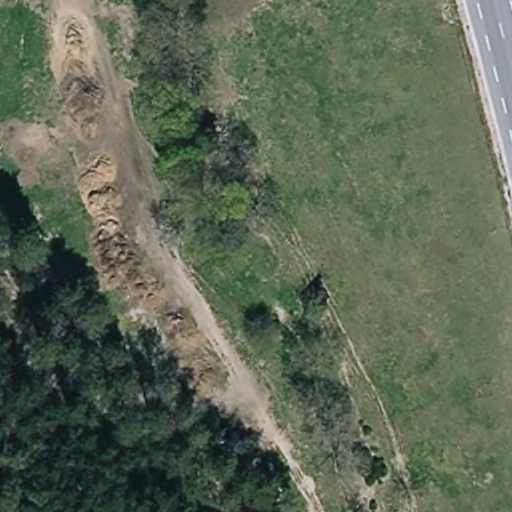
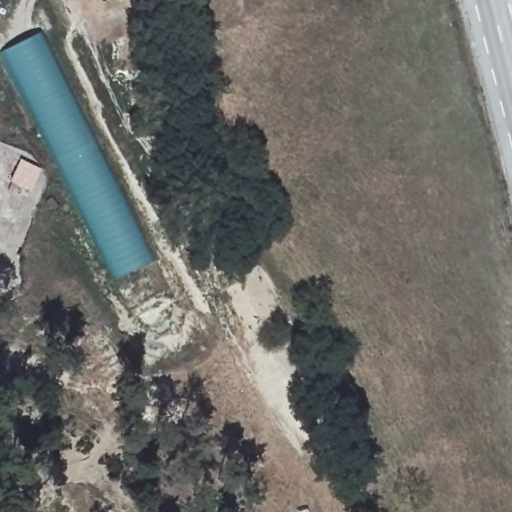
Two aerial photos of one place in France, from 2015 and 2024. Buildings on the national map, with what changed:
new [(39,31),(158,258),(113,281),(0,55),(0,52),(39,31)]

